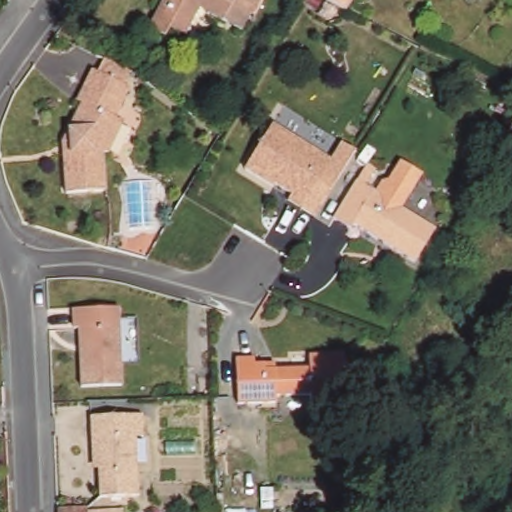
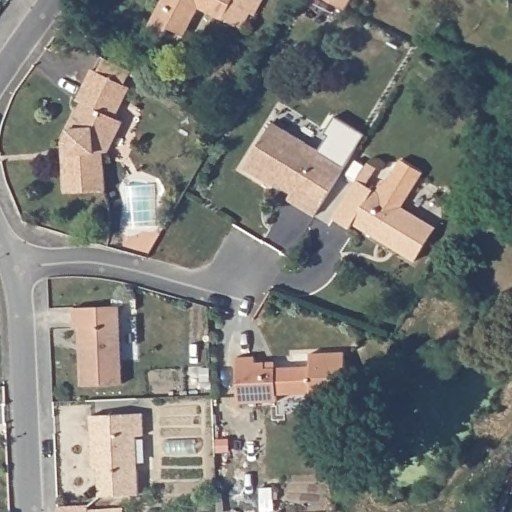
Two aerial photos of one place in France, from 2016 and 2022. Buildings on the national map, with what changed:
unchanged [(180,36),(165,29),(161,38),(145,29),(160,0),(253,0),(238,30),(219,20),(195,8),(180,36)]
unchanged [(348,10),(328,0),(354,0),(348,10)]
unchanged [(65,131),(79,104),(74,102),(90,71),(127,89),(112,119),(120,123),(104,153),(99,154),(102,192),(63,194),(60,157),(59,143),(65,131)]
unchanged [(274,190),(278,184),(260,174),(259,177),(230,159),(258,113),(318,150),(288,199),(274,190)]
unchanged [(329,132),(341,140),(333,154),(301,207),(288,199),(318,150),(329,132)]
unchanged [(375,192),(382,180),(388,179),(402,160),(424,173),(401,208),(375,192)]
unchanged [(359,177),(368,182),(366,186),(436,229),(415,264),(353,226),(351,230),(334,219),(357,181),(359,177)]
unchanged [(120,308),(123,386),(83,387),(80,329),(75,329),(74,309),(120,308)]
unchanged [(310,355),(345,354),(347,402),(313,403),(312,394),(277,396),(278,402),(239,404),(237,359),(255,358),(255,364),(265,364),(270,363),(270,370),(310,368),(310,355)]
unchanged [(144,415),(144,437),(137,437),(139,496),(100,498),(99,468),(99,459),(94,459),(92,417),(144,415)]
unchanged [(94,469),(94,459),(99,468),(94,469)]
unchanged [(89,511),(123,510),(123,512),(58,512),(58,508),(89,507),(89,511)]

